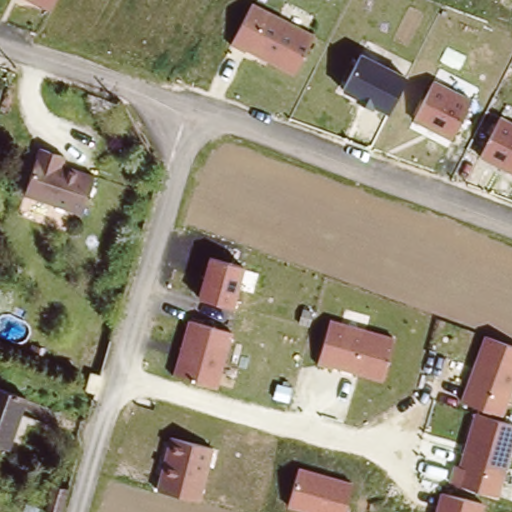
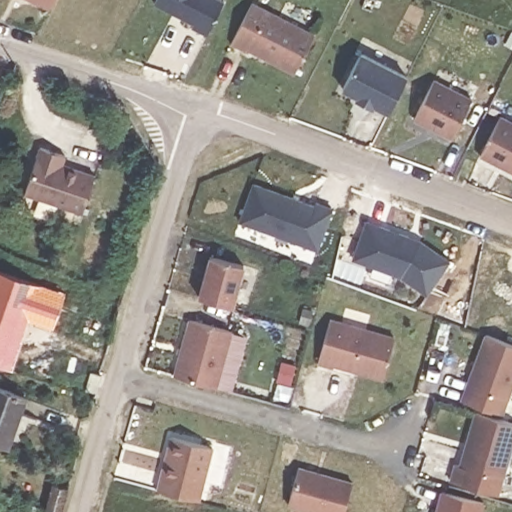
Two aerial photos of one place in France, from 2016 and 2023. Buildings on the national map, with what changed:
unchanged [(46,10),(29,0),(51,0),(46,10)]
new [(156,0),(219,0),(224,2),(207,36),(191,28),(193,26),(154,5),(156,0)]
unchanged [(252,3),(312,34),(292,75),(231,43),(252,3)]
unchanged [(406,78),(389,113),(340,90),(361,53),(406,78)]
unchanged [(472,100),(452,138),(414,119),(433,81),(472,100)]
unchanged [(480,155),(499,117),(512,123),(512,172),(480,155)]
unchanged [(38,152),(63,160),(60,169),(93,180),(80,217),(22,198),(38,152)]
new [(252,185),(315,206),(316,203),(333,209),(319,252),(239,222),(252,185)]
new [(366,221),(420,241),(451,263),(427,298),(401,279),(352,260),(366,221)]
unchanged [(208,257),(247,268),(236,309),(197,300),(208,257)]
new [(56,292),(48,318),(24,309),(5,362),(0,361),(0,273),(56,292)]
unchanged [(394,336),(383,378),(318,362),(328,319),(394,336)]
unchanged [(187,320),(232,332),(217,388),(172,376),(187,320)]
unchanged [(503,420),(512,422),(512,446),(498,496),(456,483),(478,406),(462,400),(485,336),(512,345),(512,391),(503,420)]
unchanged [(13,447),(0,443),(0,387),(30,397),(13,447)]
unchanged [(169,436),(213,449),(199,502),(154,490),(169,436)]
unchanged [(344,512),(307,512),(287,507),(299,466),(353,482),(344,512)]
unchanged [(53,512),(48,510),(55,486),(70,491),(64,512),(53,512)]
unchanged [(483,512),(435,512),(440,493),(485,504),(483,512)]

